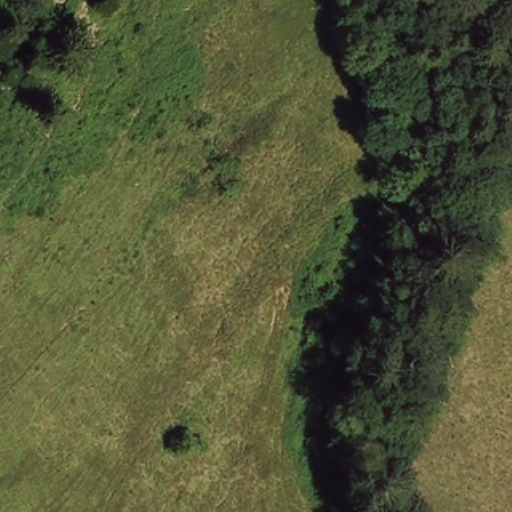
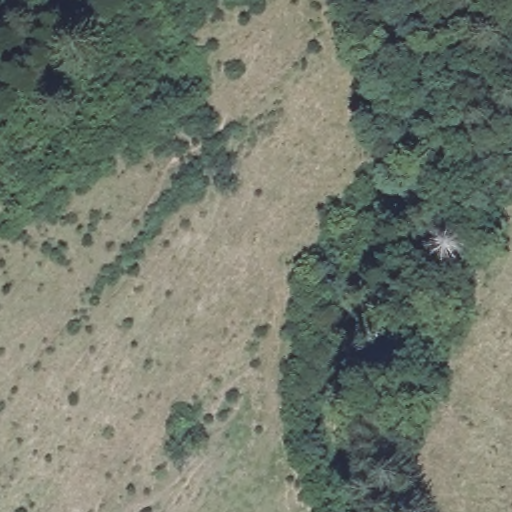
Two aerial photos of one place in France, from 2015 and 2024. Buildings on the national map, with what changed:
[]

